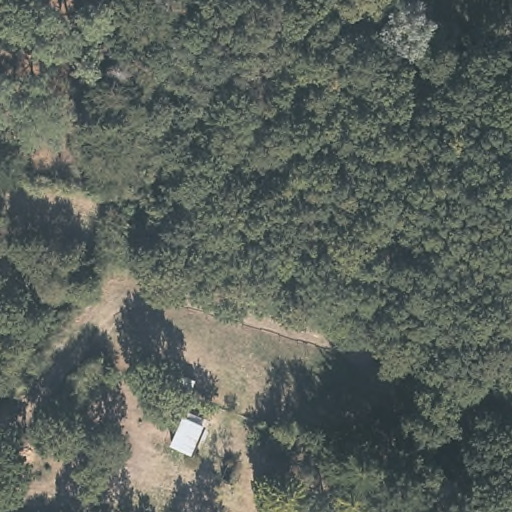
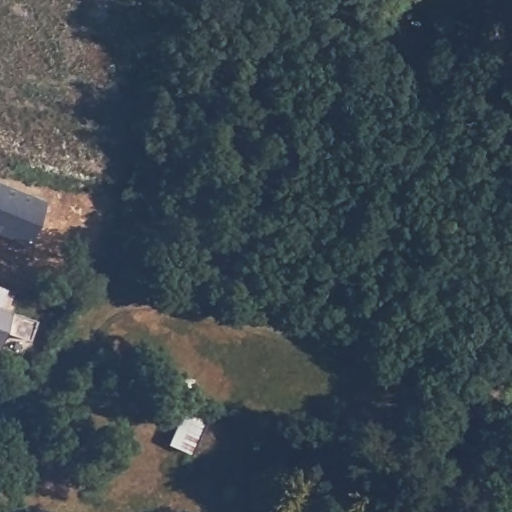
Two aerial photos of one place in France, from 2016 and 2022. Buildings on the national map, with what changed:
new [(28,244),(0,233),(0,183),(46,203),(28,244)]
new [(3,291),(0,299),(0,290),(3,291)]
new [(32,324),(25,344),(0,335),(0,312),(32,324)]
unchanged [(200,424),(189,452),(172,446),(184,418),(200,424)]

